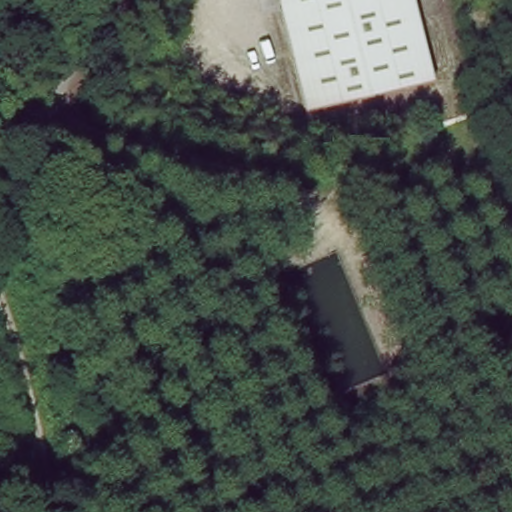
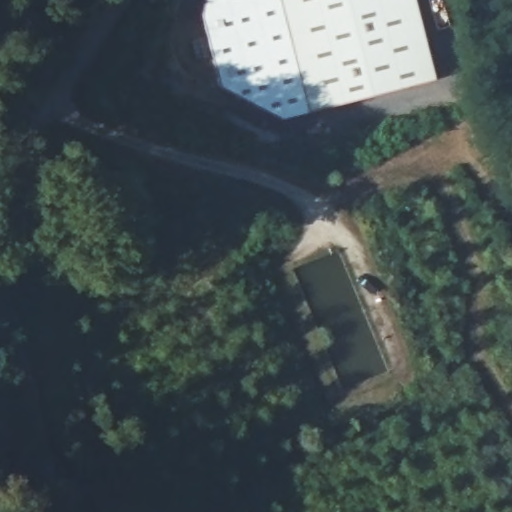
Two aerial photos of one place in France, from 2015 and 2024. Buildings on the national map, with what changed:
new [(317,110),(283,121),(220,87),(201,15),(206,0),(286,0),(317,110)]
unchanged [(318,116),(286,0),(420,0),(443,82),(318,116)]

